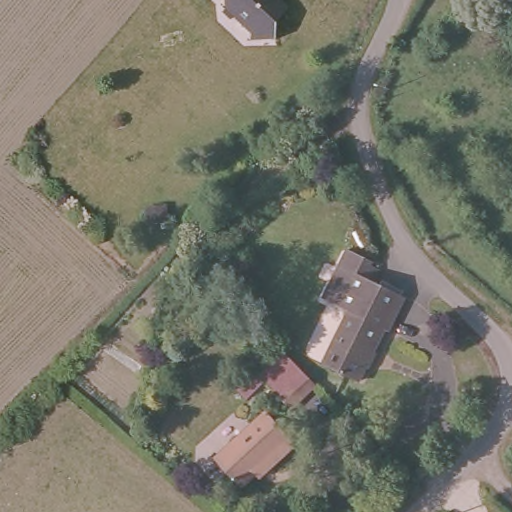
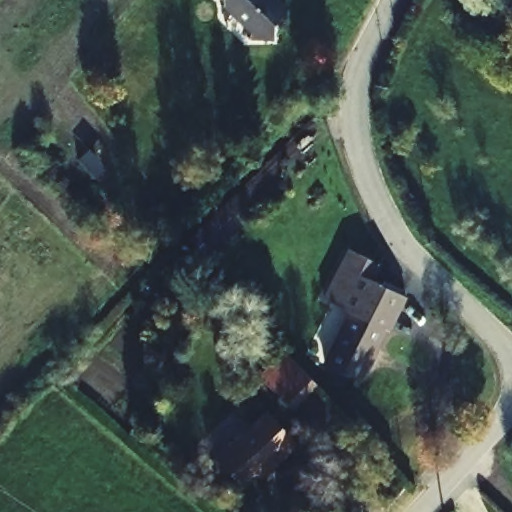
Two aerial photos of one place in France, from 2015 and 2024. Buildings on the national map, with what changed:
unchanged [(275,21),(277,34),(250,40),(247,25),(221,0),(283,0),(288,5),(275,21)]
unchanged [(379,267),(372,277),(404,295),(385,328),(379,326),(351,376),(317,356),(346,307),(320,292),(347,245),(372,260),(379,267)]
unchanged [(259,363),(285,340),(316,375),(291,398),(264,369),(259,363)]
unchanged [(267,420),(297,453),(272,476),(269,472),(242,496),(215,466),(267,420)]

